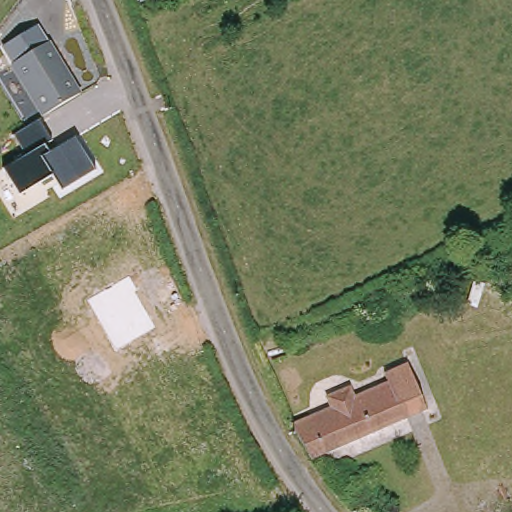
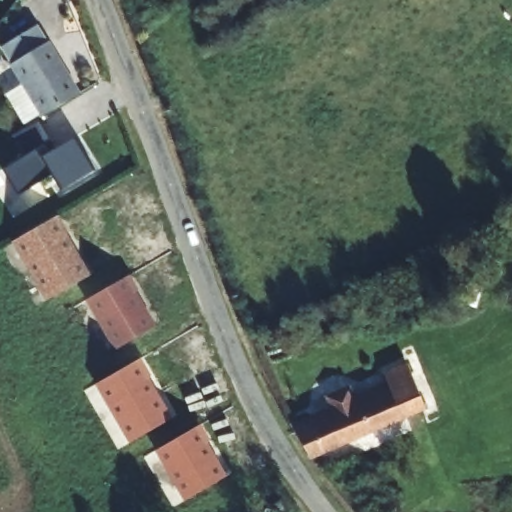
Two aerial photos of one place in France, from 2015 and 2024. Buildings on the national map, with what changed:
unchanged [(49,37),(81,89),(65,98),(45,111),(12,60),(49,37)]
unchanged [(25,155),(13,134),(39,118),(52,138),(44,142),(49,150),(75,135),(95,167),(62,188),(52,173),(19,193),(4,166),(25,155)]
new [(57,210),(67,227),(65,228),(90,269),(51,292),(16,234),(57,210)]
unchanged [(136,290),(134,291),(154,327),(116,349),(89,300),(129,276),(136,290)]
new [(153,375),(148,377),(172,416),(131,443),(95,384),(142,359),(153,375)]
unchanged [(337,416),(332,406),(350,398),(354,408),(392,394),(386,382),(409,371),(426,415),(312,465),(295,433),(337,416)]
new [(212,440),(207,442),(227,476),(185,500),(154,450),(202,422),(212,440)]

